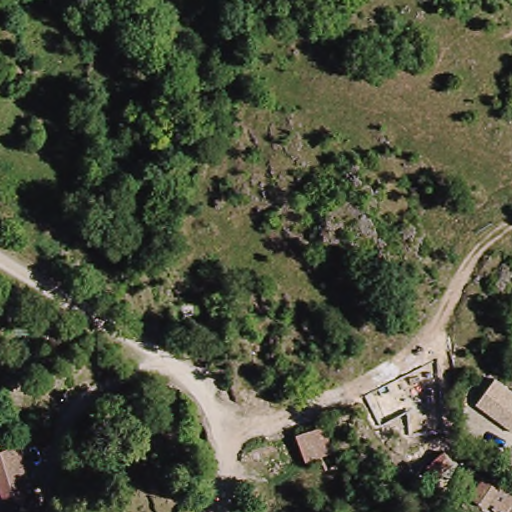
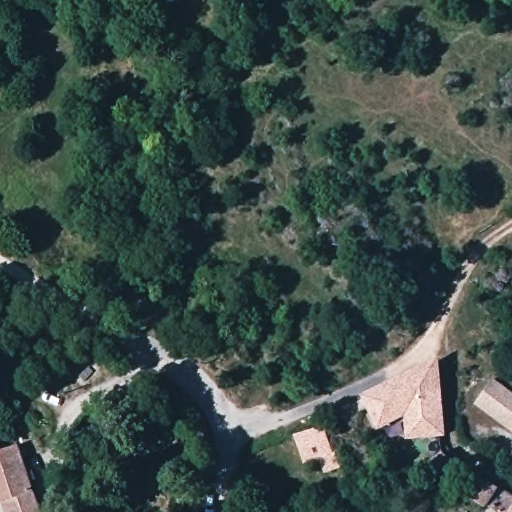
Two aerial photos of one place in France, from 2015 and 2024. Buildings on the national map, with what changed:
new [(446,437),(406,440),(404,417),(378,431),(360,395),(439,357),(446,437)]
unchanged [(493,381),(512,393),(512,435),(476,411),(493,381)]
unchanged [(332,451),(305,461),(294,433),(321,422),(332,451)]
unchanged [(0,455),(19,450),(28,476),(39,512),(9,512),(0,485),(0,455)]
unchanged [(444,452),(451,462),(434,475),(427,466),(444,452)]
unchanged [(512,499),(512,512),(495,512),(489,507),(487,510),(471,500),(484,480),(503,492),(512,499)]

